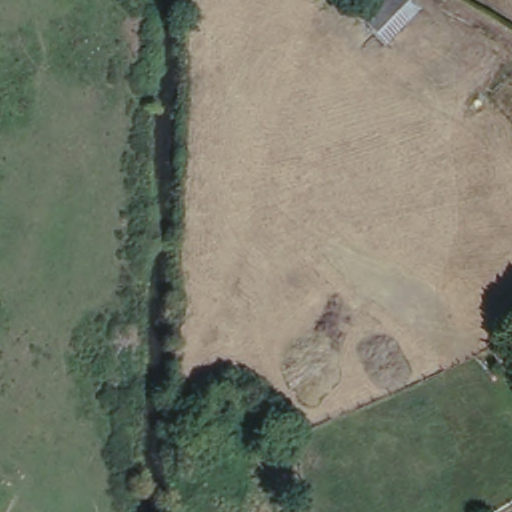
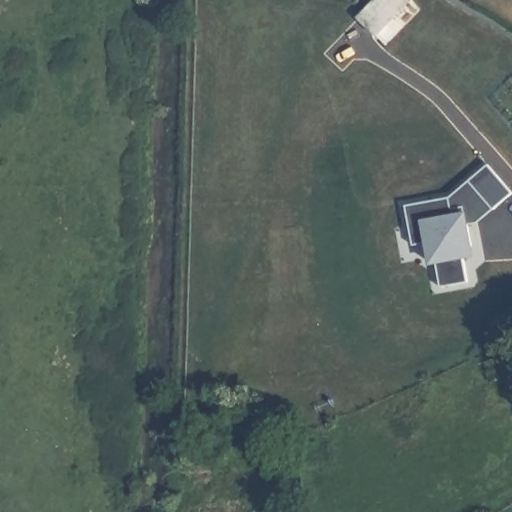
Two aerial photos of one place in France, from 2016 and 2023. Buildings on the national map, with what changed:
unchanged [(427,17),(386,51),(355,18),(375,0),(410,0),(427,17)]
new [(463,229),(467,254),(459,256),(463,282),(437,287),(433,263),(427,264),(423,245),(410,247),(402,207),(446,200),(483,166),(505,194),(463,229)]
new [(512,344),(512,378),(492,346),(507,337),(512,344)]

